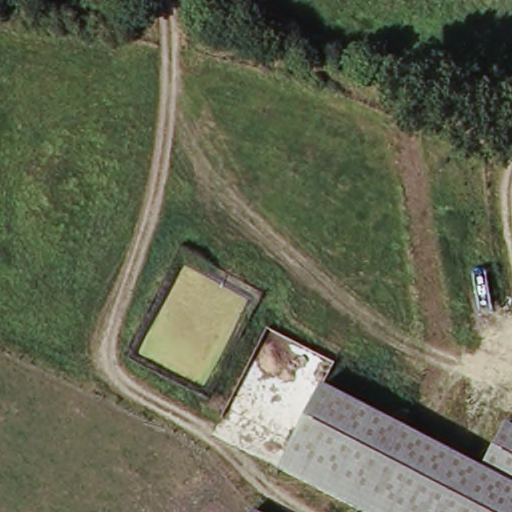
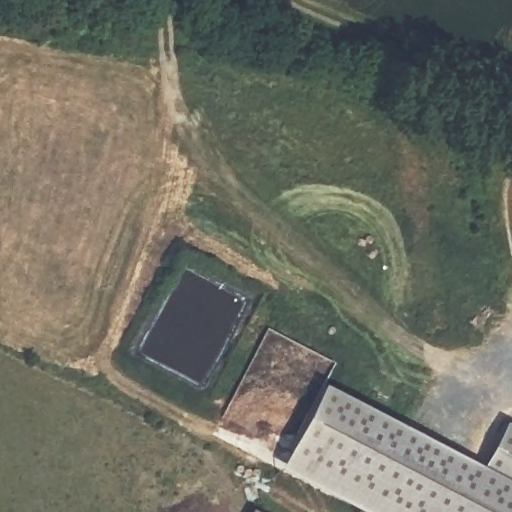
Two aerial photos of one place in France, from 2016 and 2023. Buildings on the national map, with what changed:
unchanged [(481,468),(505,424),(512,427),(512,512),(361,512),(279,472),(324,388),(481,468)]

